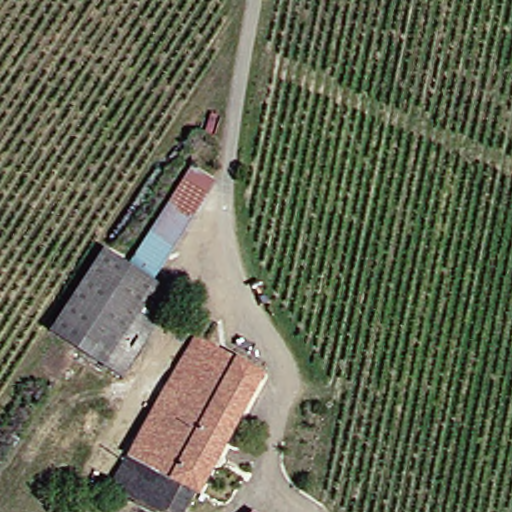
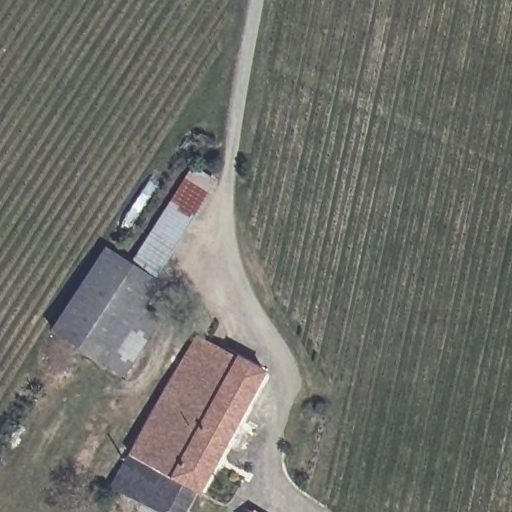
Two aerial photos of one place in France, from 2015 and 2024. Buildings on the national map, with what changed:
unchanged [(187,166),(210,180),(152,275),(129,261),(187,166)]
unchanged [(51,341),(107,247),(129,261),(152,275),(164,283),(154,301),(111,375),(78,356),(51,341)]
unchanged [(260,368),(179,512),(145,512),(105,492),(185,332),(260,368)]

